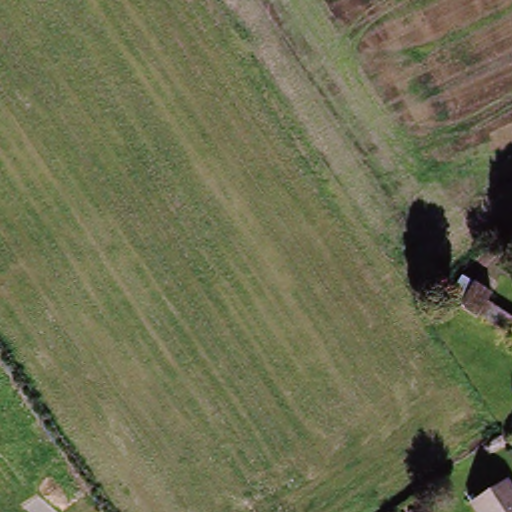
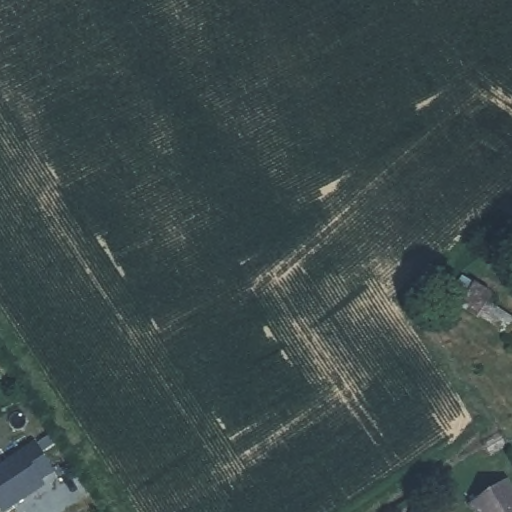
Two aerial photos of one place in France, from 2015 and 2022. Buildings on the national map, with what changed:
unchanged [(472,295),(499,309),(491,326),(444,302),(457,280),(474,290),(472,295)]
new [(55,473),(43,481),(46,486),(7,512),(4,512),(0,505),(0,470),(38,445),(55,473)]
unchanged [(468,502),(499,483),(512,504),(512,512),(474,512),(468,502)]

